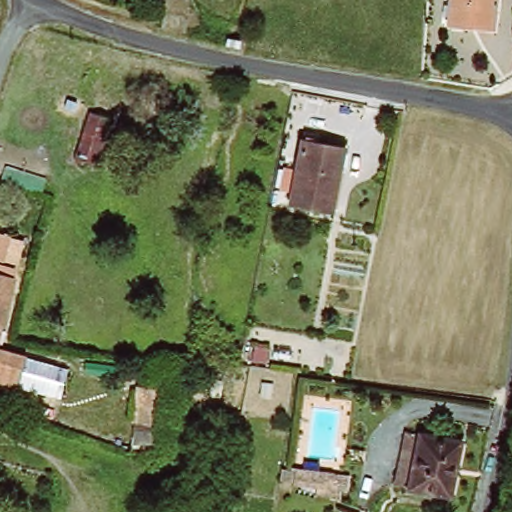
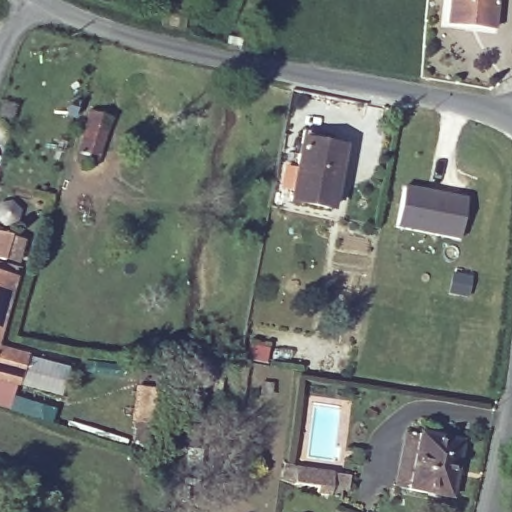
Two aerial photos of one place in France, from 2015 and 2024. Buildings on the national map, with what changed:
unchanged [(497,33),(448,29),(451,0),(499,0),(497,33)]
unchanged [(88,113),(108,120),(93,166),(73,159),(88,113)]
unchanged [(300,143),(340,150),(328,208),(290,200),(300,143)]
new [(405,187),(468,200),(461,240),(397,227),(405,187)]
unchanged [(18,236),(10,260),(0,256),(0,234),(1,230),(18,236)]
unchanged [(0,327),(0,277),(15,282),(0,327)]
unchanged [(15,392),(0,385),(0,353),(26,363),(15,392)]
unchanged [(140,432),(125,432),(127,401),(142,401),(140,432)]
unchanged [(455,496),(412,489),(396,485),(407,435),(421,437),(465,443),(455,496)]
unchanged [(297,483),(301,466),(334,473),(337,473),(332,499),(328,497),(297,483)]

